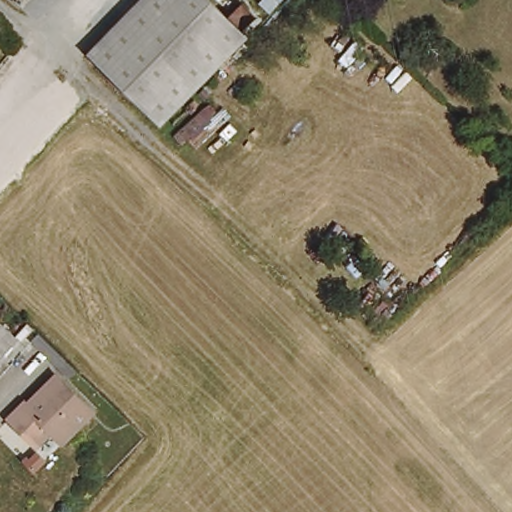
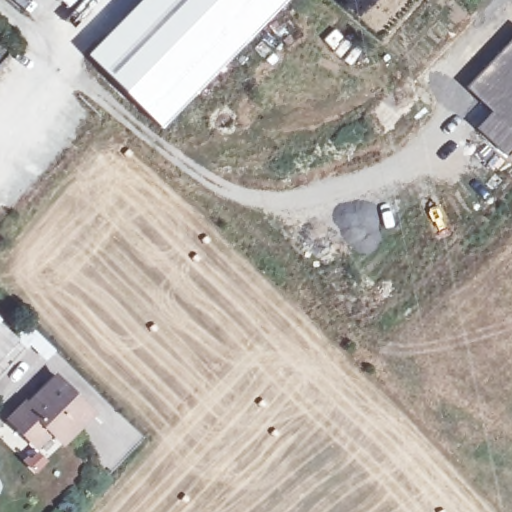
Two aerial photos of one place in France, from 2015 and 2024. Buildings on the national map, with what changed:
unchanged [(89,56),(143,0),(210,0),(250,37),(162,127),(89,56)]
new [(250,37),(210,0),(286,0),(250,37)]
demolished [(272,15),(260,3),(263,0),(287,0),(272,15)]
new [(512,38),(512,152),(506,158),(475,130),(490,111),(465,87),(512,38)]
unchanged [(0,361),(0,320),(18,340),(0,361)]
unchanged [(56,434),(40,450),(12,423),(29,406),(32,408),(60,379),(95,413),(80,429),(66,444),(56,434)]

